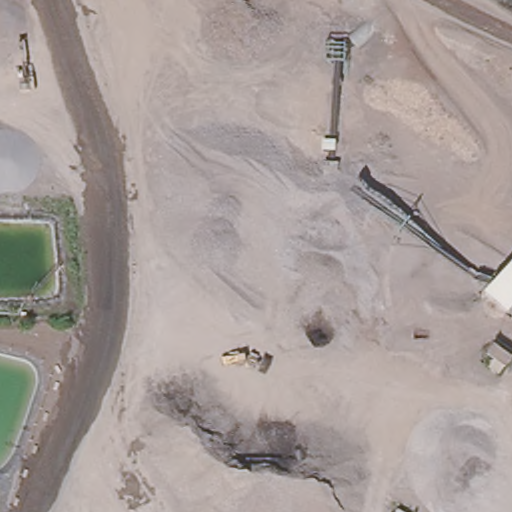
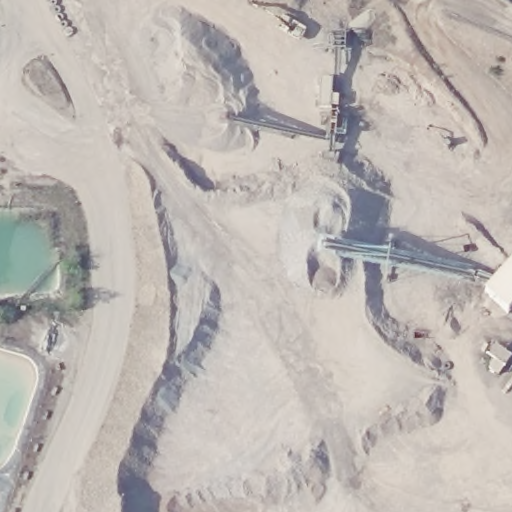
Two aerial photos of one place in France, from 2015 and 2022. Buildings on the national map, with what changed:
unchanged [(484,292),(512,262),(512,311),(509,315),(484,292)]

